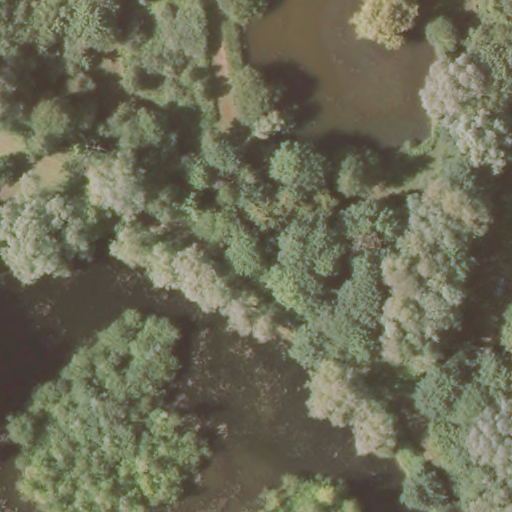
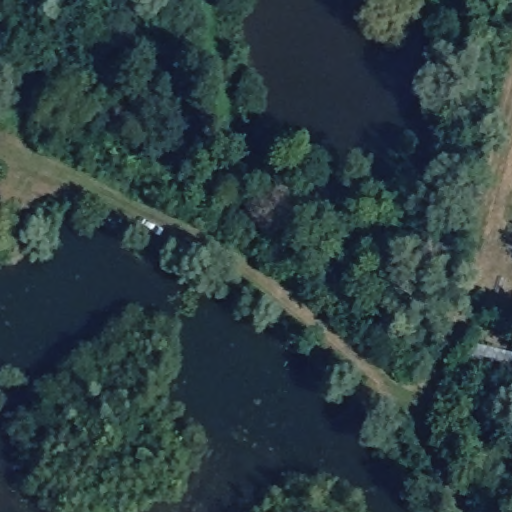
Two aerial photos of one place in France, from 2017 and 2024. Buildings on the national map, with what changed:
unchanged [(512,351),(512,385),(462,373),(470,340),(512,351)]

